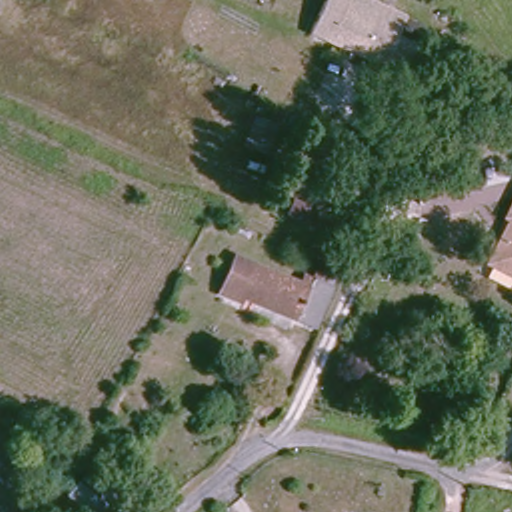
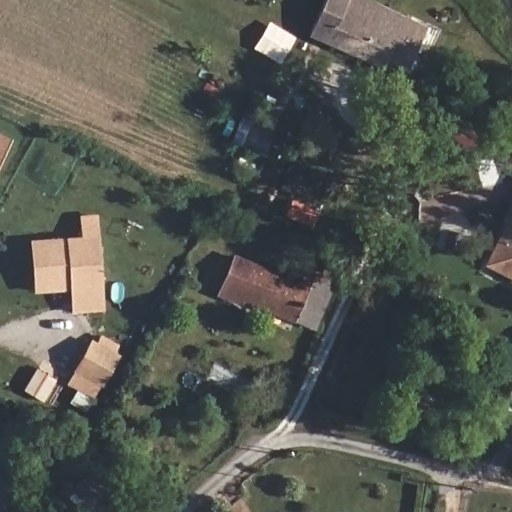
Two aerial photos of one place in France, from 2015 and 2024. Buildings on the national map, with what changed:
unchanged [(384,69),(300,31),(315,0),(362,0),(404,20),(384,69)]
unchanged [(281,129),(270,159),(241,146),(254,116),(281,129)]
unchanged [(512,206),(512,222),(505,218),(512,206)]
new [(72,312),(70,288),(35,290),(31,240),(81,235),(79,215),(98,213),(105,310),(72,312)]
unchanged [(512,225),(512,277),(490,265),(512,225)]
unchanged [(316,327),(241,299),(250,269),(299,287),(303,274),(331,283),(316,327)]
new [(101,335),(118,346),(116,350),(120,353),(92,403),(64,388),(92,338),(98,341),(101,335)]
new [(37,367),(57,380),(44,401),(24,388),(37,367)]
unchanged [(119,489),(98,512),(78,512),(64,497),(93,463),(119,489)]

